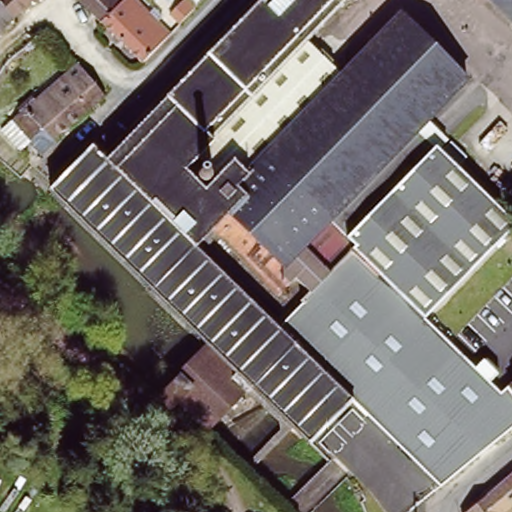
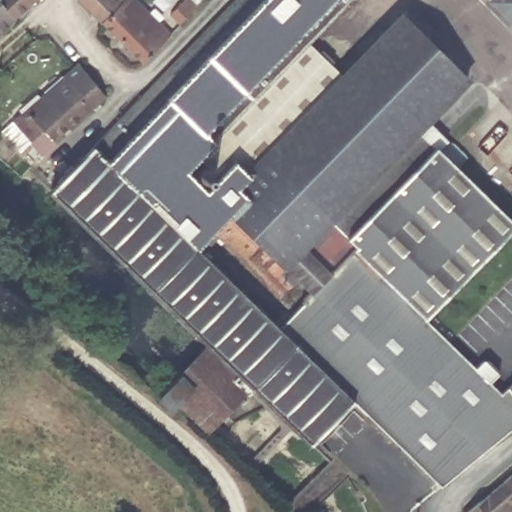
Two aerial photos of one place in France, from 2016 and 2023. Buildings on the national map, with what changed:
unchanged [(0,0),(32,0),(11,18),(10,16),(0,5),(0,0)]
unchanged [(212,136),(216,139),(188,167),(195,174),(199,171),(210,160),(217,167),(222,172),(236,158),(248,170),(403,12),(467,76),(419,126),(512,218),(512,227),(425,313),(380,268),(327,321),(315,309),(292,333),(355,395),(350,400),(318,432),(313,437),(301,426),(297,422),(253,380),(252,381),(231,403),(209,426),(183,401),(175,407),(172,405),(162,396),(162,395),(168,387),(188,361),(210,338),(52,185),(68,169),(234,0),(346,0),(212,136)]
unchanged [(78,0),(110,0),(113,4),(117,0),(119,0),(123,5),(129,0),(137,0),(147,11),(170,35),(142,65),(103,26),(78,0)]
unchanged [(498,0),(512,0),(512,14),(498,0)]
unchanged [(170,15),(182,4),(183,6),(187,2),(194,11),(180,25),(170,15)]
unchanged [(11,18),(0,30),(0,5),(10,16),(11,18)]
unchanged [(54,141),(52,140),(46,145),(38,136),(33,140),(17,120),(77,68),(80,66),(107,97),(54,141)]
unchanged [(323,437),(355,405),(355,395),(292,333),(315,309),(327,321),(380,268),(425,313),(500,392),(505,387),(512,396),(512,427),(439,486),(369,417),(365,413),(333,447),(323,437)]
unchanged [(505,387),(512,381),(512,396),(505,387)]
unchanged [(470,512),(512,476),(512,512),(470,512)]

